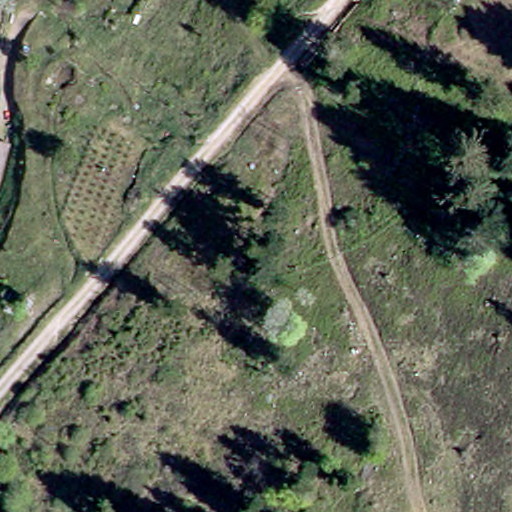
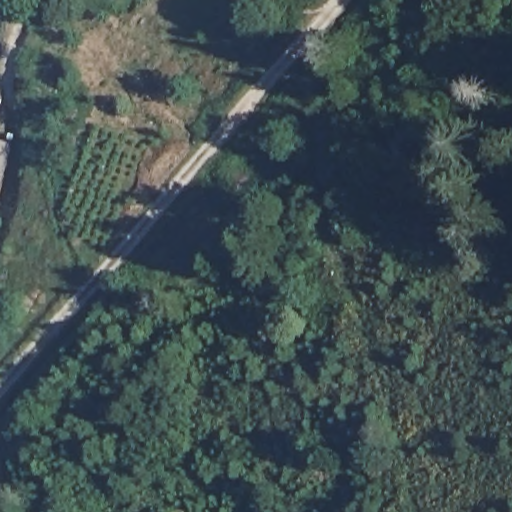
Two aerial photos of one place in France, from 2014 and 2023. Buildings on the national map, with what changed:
unchanged [(0,188),(0,143),(10,146),(0,188)]

